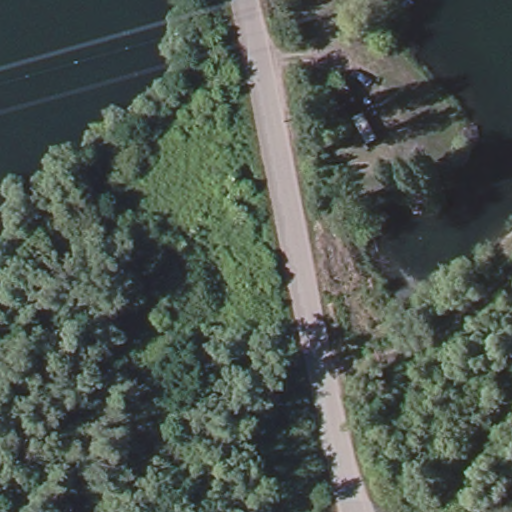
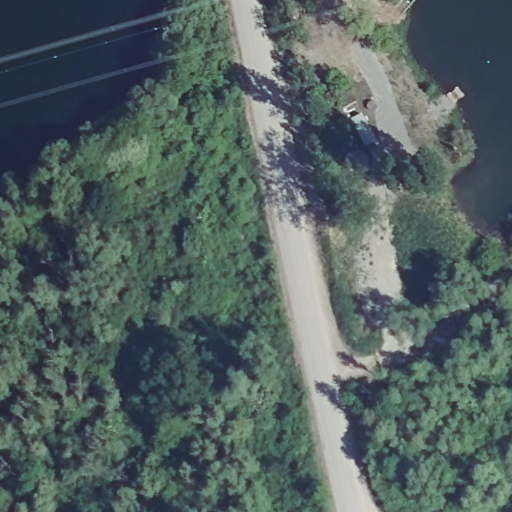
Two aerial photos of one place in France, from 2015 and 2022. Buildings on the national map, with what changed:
unchanged [(377,137),(368,143),(356,121),(352,122),(337,131),(327,110),(335,105),(330,92),(348,82),(377,137)]

